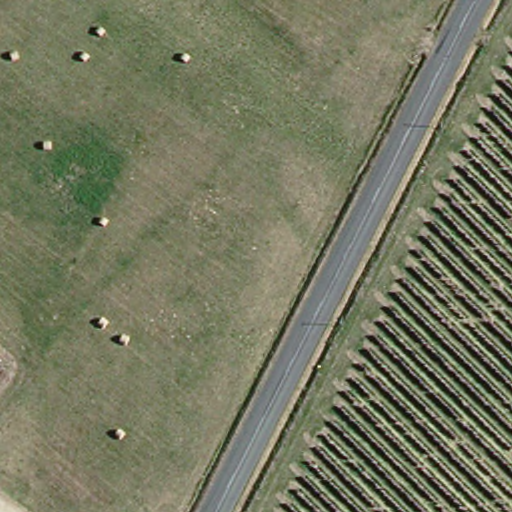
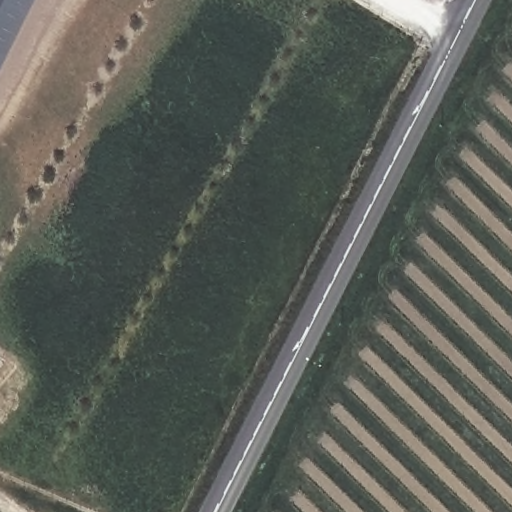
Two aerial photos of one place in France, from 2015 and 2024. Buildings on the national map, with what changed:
new [(0,0),(36,0),(0,71),(0,0)]

